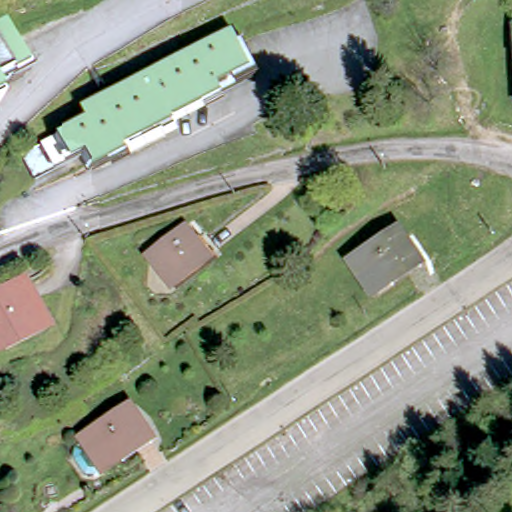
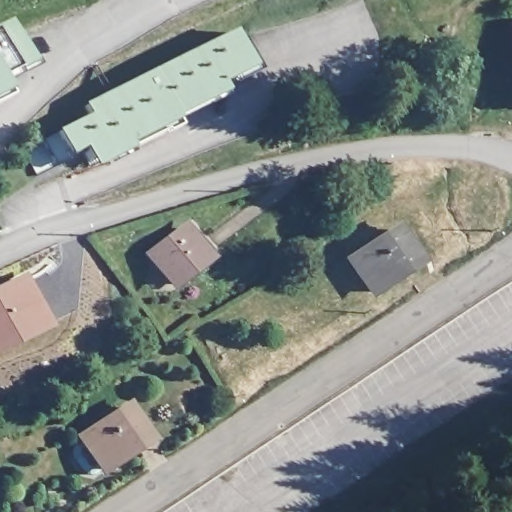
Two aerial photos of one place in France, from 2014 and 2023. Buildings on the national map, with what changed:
unchanged [(509,19),(512,19),(512,52),(509,19)]
unchanged [(0,76),(0,32),(17,68),(0,76)]
unchanged [(244,64),(217,79),(217,90),(160,118),(160,130),(112,155),(106,151),(87,160),(77,153),(35,175),(21,149),(84,116),(84,108),(228,32),(244,64)]
unchanged [(417,256),(390,273),(395,280),(372,294),(350,259),(399,229),(417,256)]
unchanged [(195,246),(204,240),(212,254),(169,285),(147,258),(185,232),(195,246)]
unchanged [(0,342),(0,289),(17,281),(37,324),(0,342)]
unchanged [(154,432),(125,451),(128,456),(96,474),(76,444),(101,428),(96,419),(117,407),(120,414),(135,404),(154,432)]

